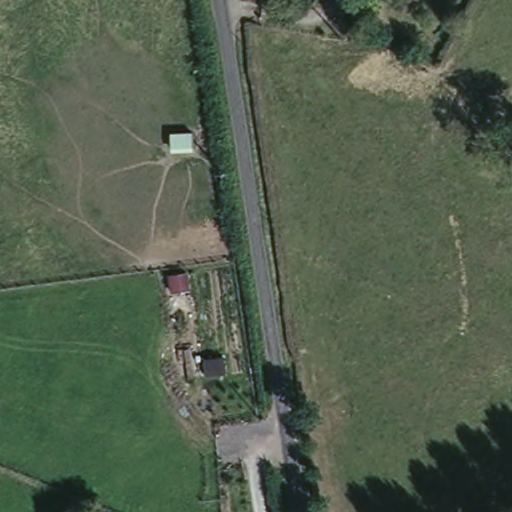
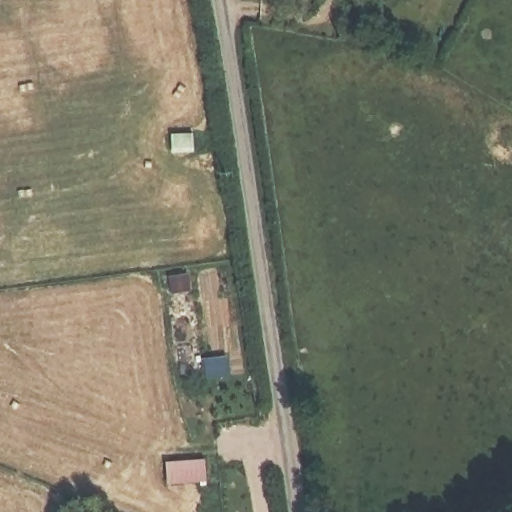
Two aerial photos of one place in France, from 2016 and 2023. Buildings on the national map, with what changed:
new [(165,455),(206,454),(206,480),(167,481),(165,455)]

